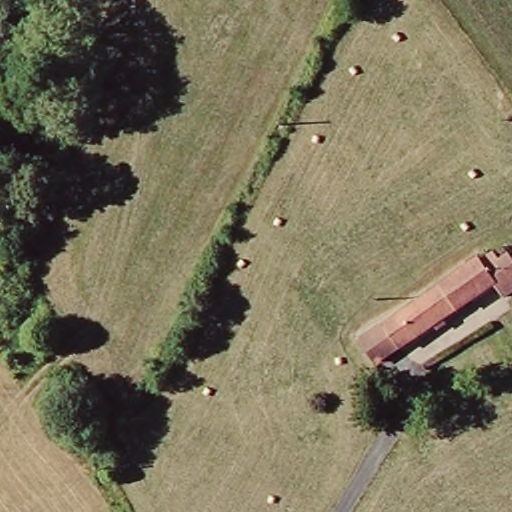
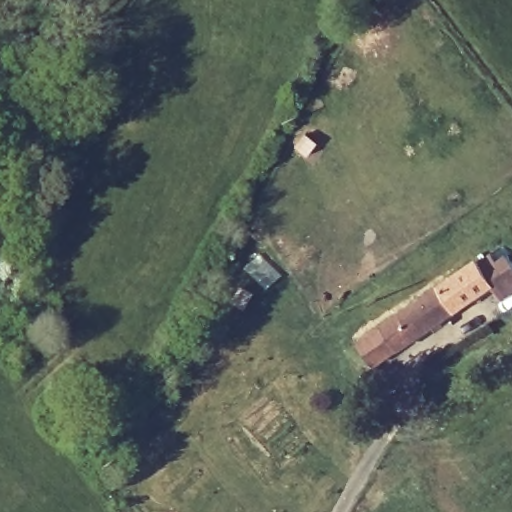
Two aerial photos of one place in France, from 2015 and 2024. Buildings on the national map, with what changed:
unchanged [(503,284),(408,346),(393,323),(428,297),(485,258),(495,272),(510,260),(512,263),(512,297),(511,298),(503,284)]

